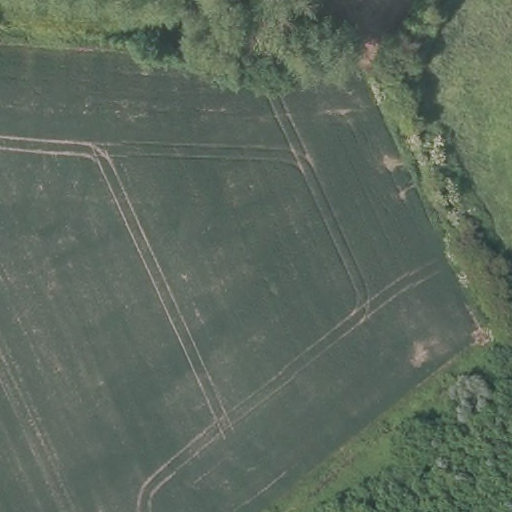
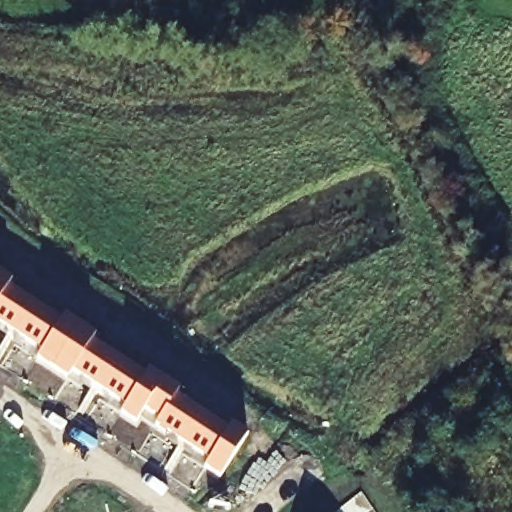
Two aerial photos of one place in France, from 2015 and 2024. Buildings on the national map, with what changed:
new [(9,281),(5,287),(60,321),(63,316),(93,335),(89,340),(143,375),(147,369),(177,389),(173,395),(226,430),(231,424),(246,435),(218,477),(203,467),(207,460),(154,425),(158,418),(144,409),(135,422),(119,412),(124,406),(71,371),(66,377),(35,357),(40,351),(0,325),(0,275),(9,281)]

